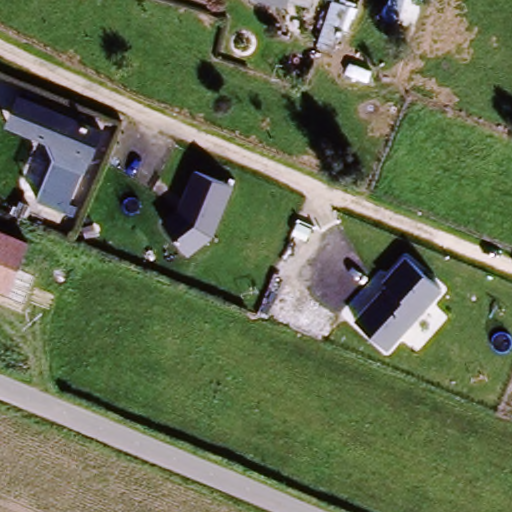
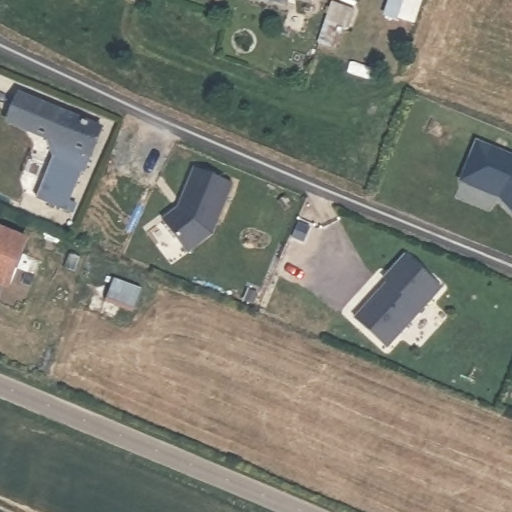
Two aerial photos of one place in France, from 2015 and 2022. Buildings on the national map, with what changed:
unchanged [(310,0),(309,3),(300,0),(310,0)]
unchanged [(46,141),(7,125),(20,97),(101,135),(85,168),(50,153),(46,141)]
new [(512,158),(512,210),(499,196),(461,180),(478,143),(512,158)]
unchanged [(68,214),(31,196),(50,153),(85,168),(68,214)]
unchanged [(233,184),(213,235),(188,254),(163,224),(177,212),(193,171),(233,184)]
unchanged [(32,242),(8,294),(0,291),(0,228),(32,242)]
unchanged [(443,290),(386,352),(354,324),(390,283),(386,277),(405,254),(443,290)]
unchanged [(8,294),(1,309),(0,308),(0,291),(8,294)]

